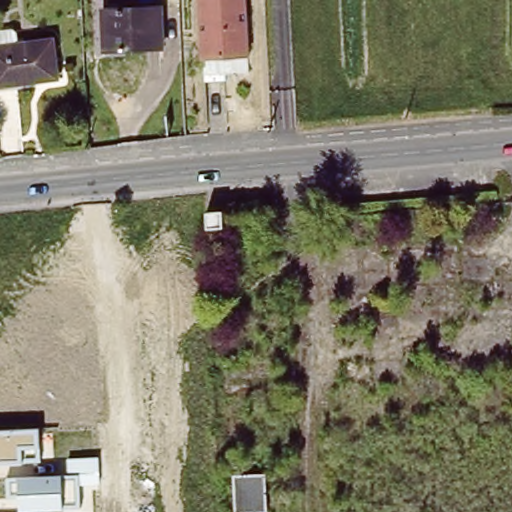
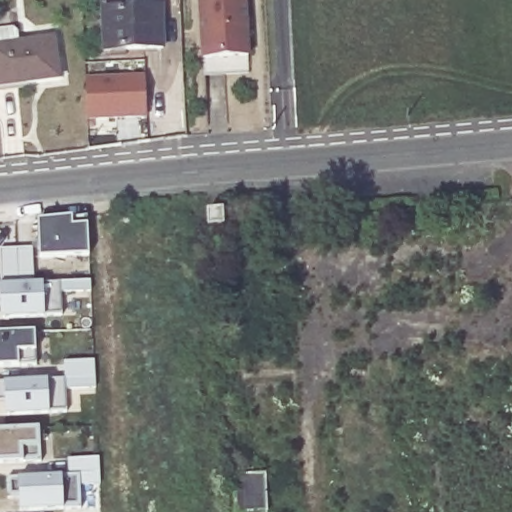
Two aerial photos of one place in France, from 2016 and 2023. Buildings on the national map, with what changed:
unchanged [(203,63),(200,0),(245,0),(248,61),(203,63)]
unchanged [(100,48),(98,6),(156,6),(156,46),(100,48)]
unchanged [(51,40),(57,80),(0,87),(0,47),(51,40)]
new [(89,119),(87,77),(143,74),(146,117),(89,119)]
new [(39,257),(38,219),(72,215),(73,220),(84,218),(85,226),(87,226),(88,255),(39,257)]
new [(93,291),(59,291),(60,313),(44,314),(43,317),(0,318),(0,248),(31,247),(32,282),(42,282),(91,280),(93,291)]
new [(34,350),(36,365),(17,365),(0,366),(0,333),(34,331),(34,350)]
new [(96,388),(65,389),(66,410),(48,410),(48,414),(4,415),(3,402),(0,402),(0,381),(4,380),(47,378),(63,378),(63,360),(95,359),(96,388)]
unchanged [(39,428),(41,460),(0,462),(0,431),(39,428)]
unchanged [(19,498),(6,498),(5,479),(60,475),(59,459),(98,456),(99,481),(79,483),(81,504),(62,505),(62,509),(20,510),(19,498)]
unchanged [(264,471),(266,511),(260,512),(237,512),(233,476),(264,471)]

